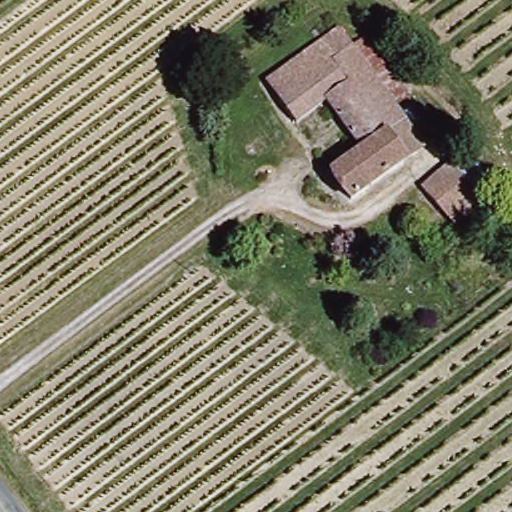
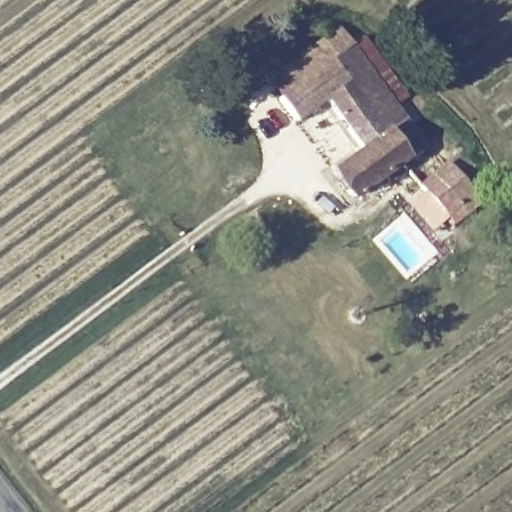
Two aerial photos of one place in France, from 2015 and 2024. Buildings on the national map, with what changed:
unchanged [(274,95),(264,80),(336,31),(346,45),(274,95)]
unchanged [(416,146),(347,195),(332,175),(364,153),(326,98),(293,121),(274,95),(346,45),(416,146)]
unchanged [(493,192),(458,223),(429,190),(464,159),(493,192)]

